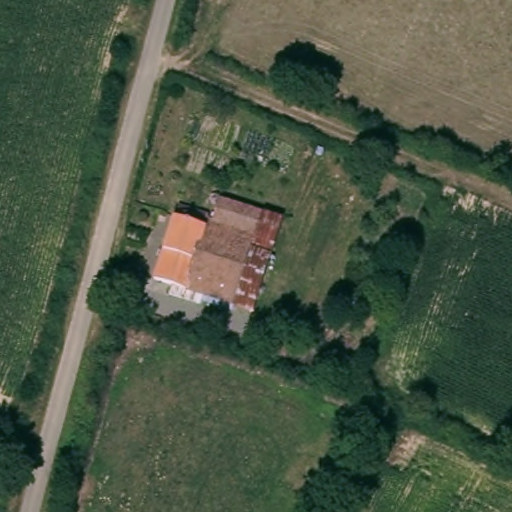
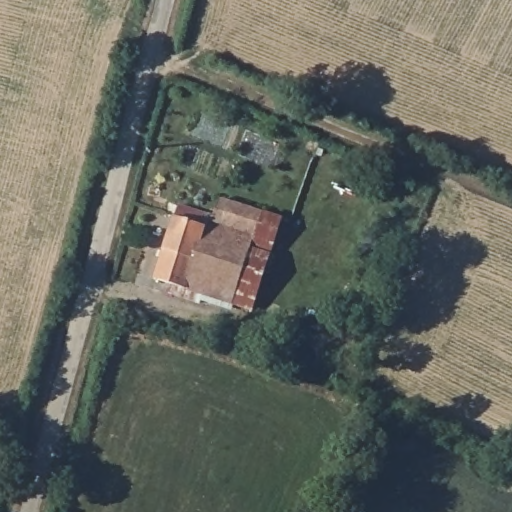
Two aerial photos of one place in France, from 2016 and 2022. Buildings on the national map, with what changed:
unchanged [(262,209),(289,216),(280,243),(262,238),(217,224),(226,199),(262,209)]
unchanged [(214,215),(212,223),(217,224),(262,238),(239,304),(210,294),(205,309),(174,299),(179,287),(158,280),(184,205),(214,215)]
unchanged [(280,243),(257,309),(239,304),(262,238),(280,243)]

